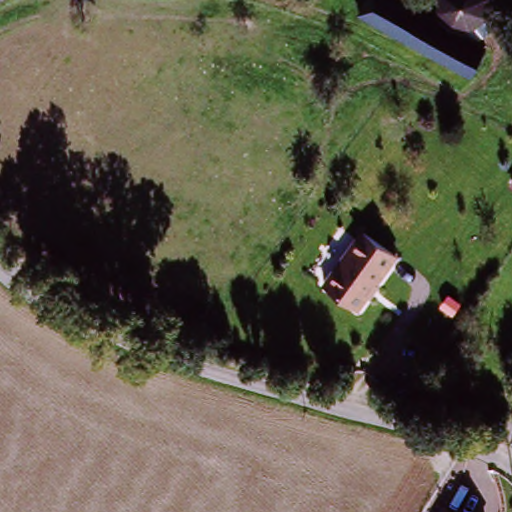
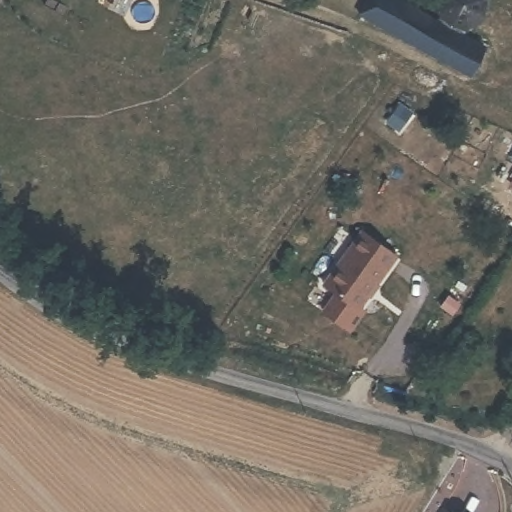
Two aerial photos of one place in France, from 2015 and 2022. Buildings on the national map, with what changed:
unchanged [(445,21),(447,22),(449,23),(450,24),(452,24),(453,25),(455,26),(456,26),(474,36),(457,68),(355,13),(362,0),(406,0),(445,20),(445,21)]
unchanged [(485,3),(485,4),(485,5),(485,6),(485,8),(485,9),(484,10),(484,11),(484,12),(484,13),(483,13),(483,14),(482,14),(482,15),(482,16),(482,17),(481,17),(481,18),(480,18),(480,19),(479,20),(478,20),(478,21),(477,21),(477,22),(477,23),(476,23),(475,23),(475,24),(474,24),(473,24),(472,25),(471,25),(470,26),(469,26),(468,26),(467,27),(465,27),(465,28),(464,28),(463,28),(462,28),(461,28),(456,26),(455,26),(453,25),(452,24),(450,24),(449,23),(447,22),(445,21),(445,20),(442,18),(442,17),(442,16),(441,15),(440,15),(440,14),(440,13),(440,12),(440,11),(439,11),(439,10),(439,9),(439,8),(439,7),(439,6),(439,5),(439,4),(439,3),(439,2),(439,1),(439,0),(485,0),(485,3)]
unchanged [(392,250),(360,308),(324,289),(355,232),(392,250)]

